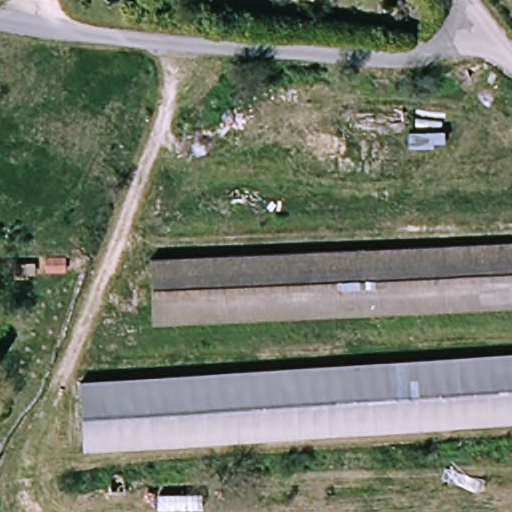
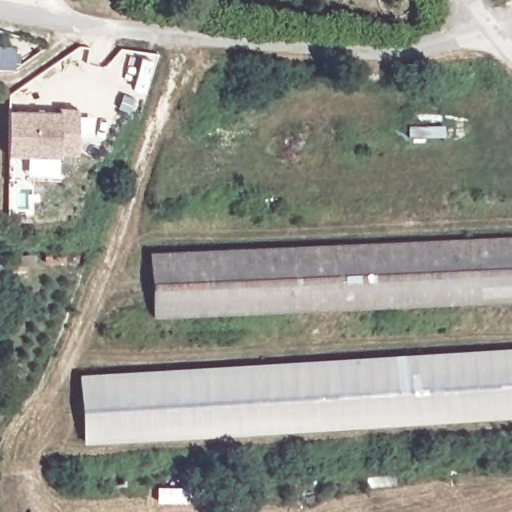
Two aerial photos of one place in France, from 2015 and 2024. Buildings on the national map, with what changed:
new [(12,112),(63,114),(63,110),(81,111),(79,153),(63,153),(62,157),(11,155),(12,112)]
unchanged [(146,257),(512,239),(512,299),(149,316),(146,257)]
unchanged [(68,263),(52,263),(52,250),(66,249),(68,263)]
unchanged [(77,378),(512,350),(512,412),(81,443),(77,378)]

